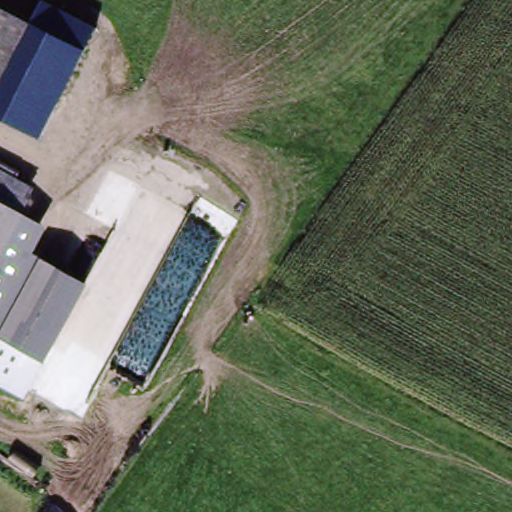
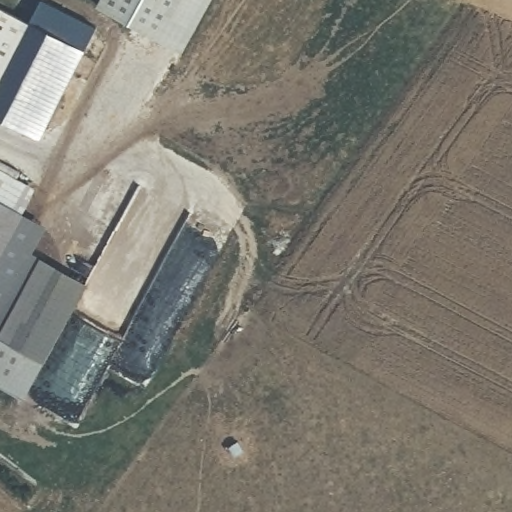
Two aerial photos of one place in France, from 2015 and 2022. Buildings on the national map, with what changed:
new [(97,27),(85,46),(31,23),(42,0),(97,27)]
new [(101,0),(213,0),(183,54),(97,6),(101,0)]
unchanged [(0,117),(0,9),(85,46),(41,138),(0,117)]
unchanged [(35,186),(31,202),(33,204),(31,216),(0,268),(0,170),(35,186)]
unchanged [(88,283),(44,364),(35,359),(28,370),(0,356),(0,352),(6,343),(0,340),(0,329),(40,257),(88,283)]

